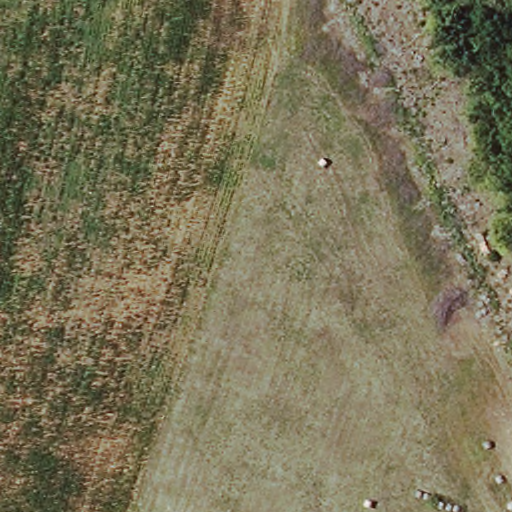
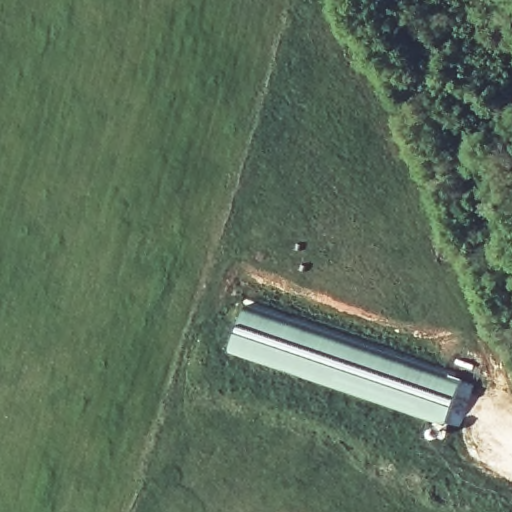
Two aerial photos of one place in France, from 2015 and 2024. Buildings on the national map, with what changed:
new [(450,373),(449,379),(460,383),(446,425),(245,357),(246,351),(233,346),(247,304),(341,337),(450,373)]

